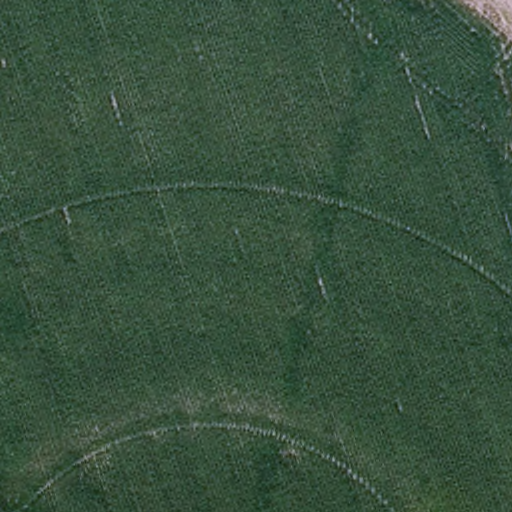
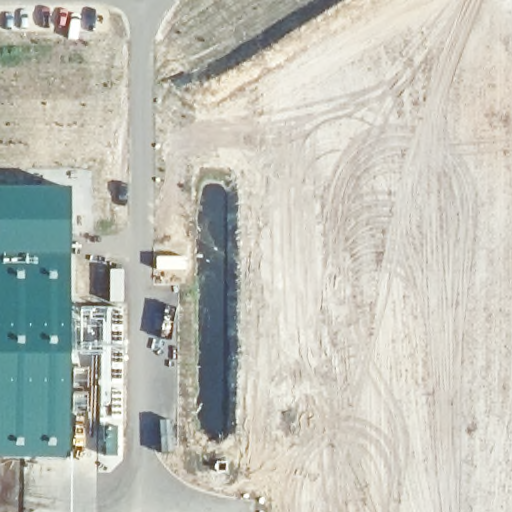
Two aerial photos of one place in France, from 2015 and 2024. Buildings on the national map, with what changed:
new [(69,219),(72,381),(69,458),(0,459),(0,186),(70,187),(69,219)]
new [(108,268),(124,268),(124,303),(107,303),(108,268)]

